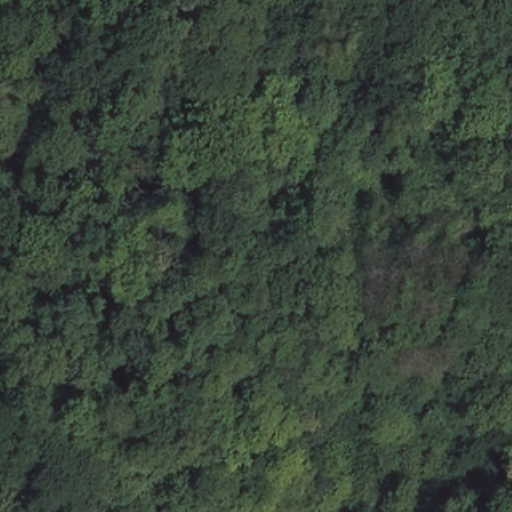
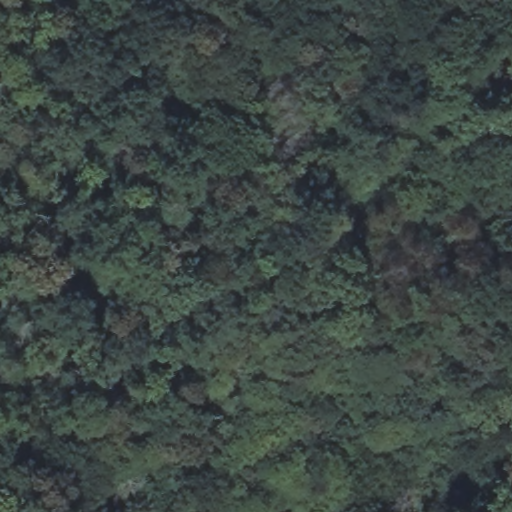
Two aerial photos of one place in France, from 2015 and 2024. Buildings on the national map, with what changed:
[]

